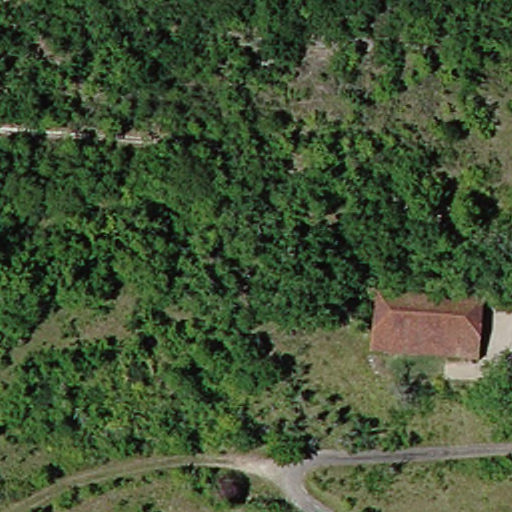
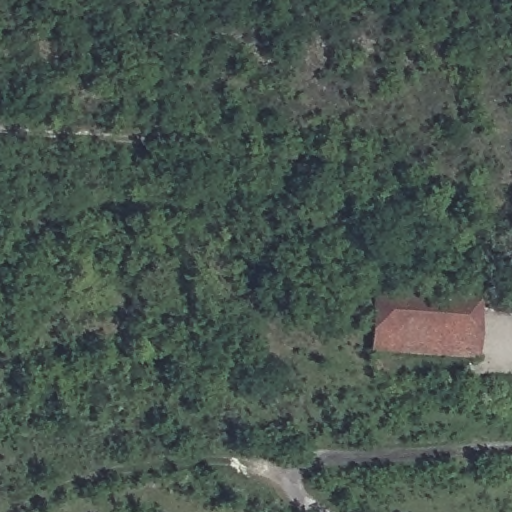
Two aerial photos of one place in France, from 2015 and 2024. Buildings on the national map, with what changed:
unchanged [(369,338),(374,277),(447,284),(442,344),(369,338)]
unchanged [(480,287),(474,347),(442,344),(447,284),(480,287)]

